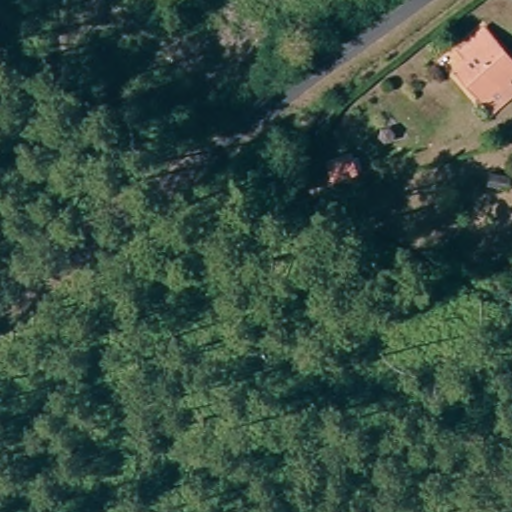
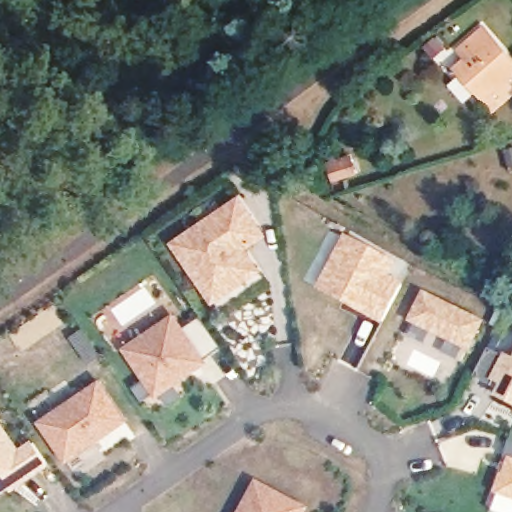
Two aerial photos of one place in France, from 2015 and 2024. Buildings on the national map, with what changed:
unchanged [(472,57),(463,47),(475,38),(489,27),(512,53),(512,100),(499,110),(483,94),(459,68),(467,61),(472,57)]
new [(350,152),(356,174),(332,183),(324,160),(350,152)]
unchanged [(512,182),(510,185),(497,180),(501,161),(512,165),(512,182)]
new [(170,241),(240,192),(268,236),(248,249),(262,269),(214,304),(170,241)]
new [(341,232),(400,261),(393,274),(402,279),(380,324),(312,288),(341,232)]
new [(425,342),(409,334),(415,324),(408,320),(423,288),(485,319),(470,351),(463,347),(457,358),(442,351),(446,340),(431,332),(425,342)]
new [(156,399),(123,350),(174,315),(183,329),(201,318),(221,348),(204,360),(206,364),(156,399)]
new [(499,381),(490,377),(503,352),(512,356),(512,404),(494,395),(499,381)]
new [(39,423),(100,380),(127,421),(66,465),(39,423)]
new [(19,449),(32,442),(49,466),(12,493),(9,488),(0,495),(0,422),(19,449)]
new [(509,455),(512,456),(512,496),(497,491),(509,455)]
new [(307,509),(306,512),(240,512),(255,482),(307,509)]

